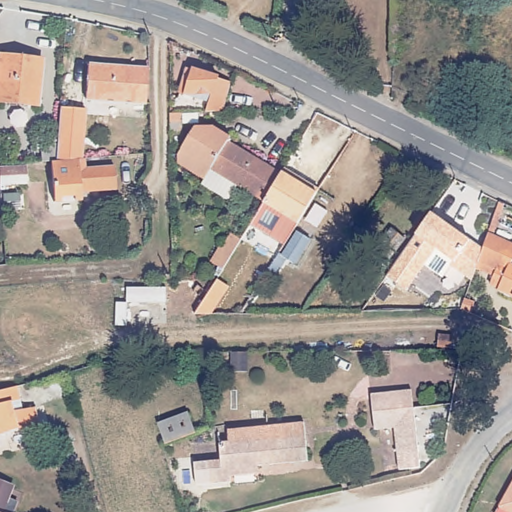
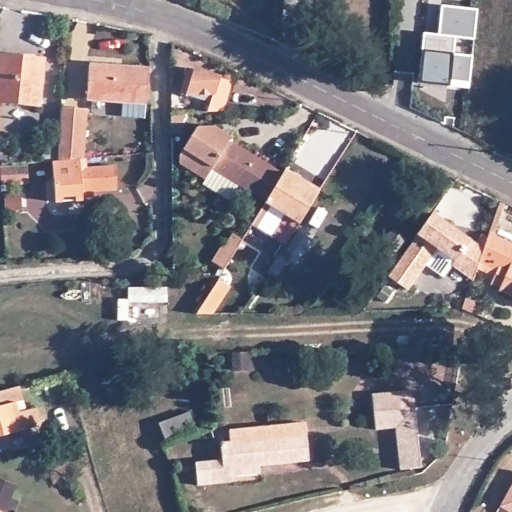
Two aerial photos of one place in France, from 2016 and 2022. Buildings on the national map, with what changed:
new [(440,3),(476,6),(473,38),(455,36),(453,51),(472,52),(469,81),(447,78),(447,83),(419,80),(422,49),(424,31),(437,33),(440,3)]
unchanged [(11,55),(55,58),(51,104),(10,101),(7,136),(0,136),(0,58),(11,59),(11,55)]
unchanged [(87,103),(90,66),(147,69),(145,106),(87,103)]
unchanged [(225,111),(182,95),(192,71),(235,88),(225,111)]
unchanged [(81,124),(79,154),(57,156),(60,122),(81,124)]
unchanged [(204,188),(207,181),(180,167),(180,159),(194,130),(213,126),(232,135),(230,141),(285,169),(272,193),(270,198),(268,200),(241,186),(233,203),(204,188)]
unchanged [(110,164),(112,191),(80,194),(79,185),(65,186),(64,169),(110,164)]
unchanged [(265,208),(268,200),(270,198),(272,193),(285,169),(286,165),(321,183),(299,224),(265,208)]
unchanged [(0,166),(4,166),(4,181),(0,181),(0,166)]
unchanged [(34,191),(26,189),(24,201),(5,198),(10,169),(36,173),(34,191)]
unchanged [(442,257),(418,301),(396,288),(420,247),(418,246),(428,229),(435,227),(475,249),(464,269),(442,257)]
unchanged [(497,294),(498,290),(488,286),(492,273),(473,264),(474,262),(476,257),(486,234),(486,232),(512,244),(512,264),(511,267),(512,267),(512,300),(497,294)]
unchanged [(386,263),(400,238),(414,246),(400,271),(386,263)]
unchanged [(308,272),(297,266),(308,244),(319,250),(308,272)]
unchanged [(456,358),(442,358),(442,341),(456,341),(456,358)]
unchanged [(26,402),(20,403),(22,412),(42,408),(46,426),(0,437),(0,392),(22,387),(26,402)]
unchanged [(427,460),(415,472),(398,474),(397,469),(395,428),(376,429),(374,412),(371,391),(419,388),(420,409),(420,443),(427,442),(427,460)]
unchanged [(159,422),(189,411),(196,432),(186,435),(166,442),(159,422)]
unchanged [(310,432),(312,461),(235,467),(235,479),(199,481),(199,457),(225,455),(225,437),(235,437),(235,426),(272,424),(273,434),(310,432)]
unchanged [(512,481),(512,512),(508,512),(497,507),(512,481)]

